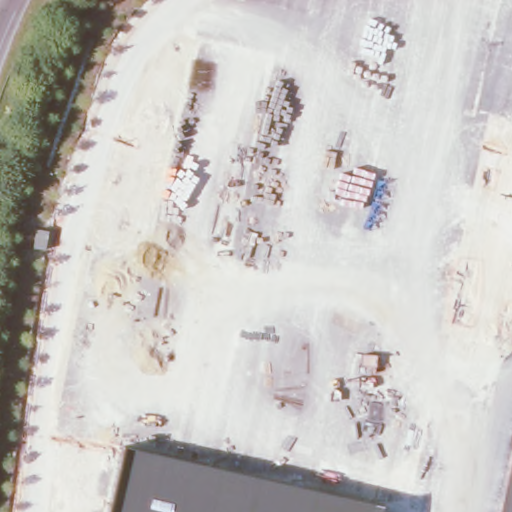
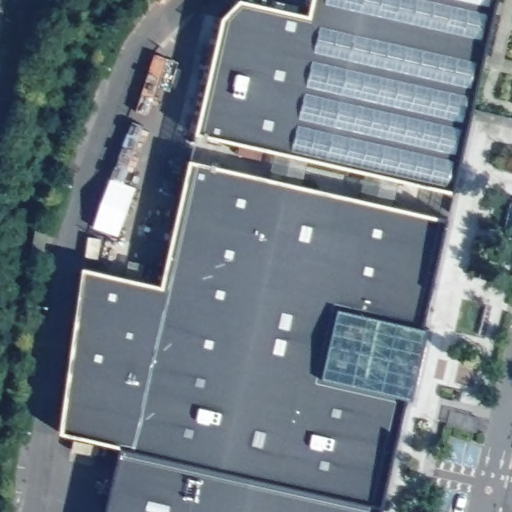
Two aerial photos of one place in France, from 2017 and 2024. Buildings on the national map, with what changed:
new [(195,134),(222,17),(238,0),(309,15),(312,0),(498,0),(454,192),(195,134)]
new [(121,446),(60,431),(81,267),(161,285),(189,160),(448,218),(385,505),(121,446)]
unchanged [(383,512),(106,512),(121,446),(385,505),(383,512)]

